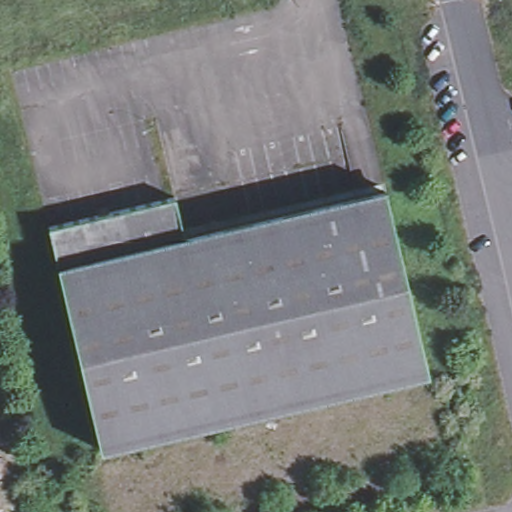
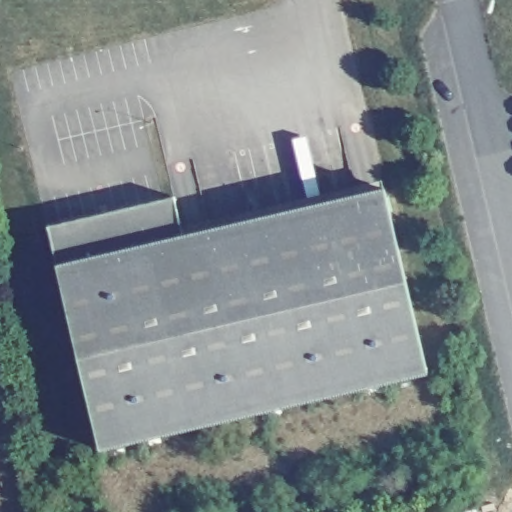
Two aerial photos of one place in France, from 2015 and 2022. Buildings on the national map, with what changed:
unchanged [(51,228),(178,197),(188,239),(282,218),(390,193),(432,375),(278,411),(102,452),(60,269),(51,228)]

